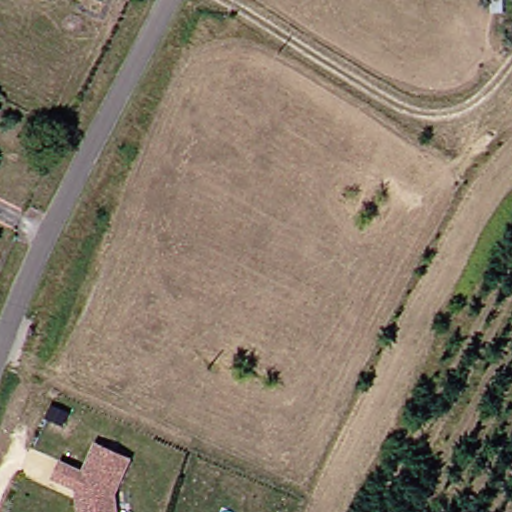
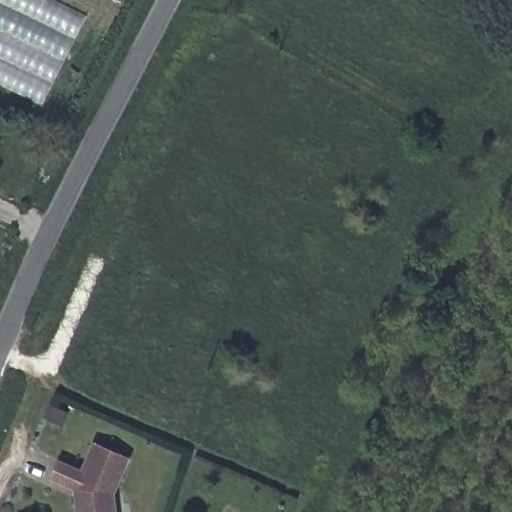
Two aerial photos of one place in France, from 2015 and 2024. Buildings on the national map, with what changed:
new [(43,105),(0,85),(0,0),(54,0),(86,15),(43,105)]
unchanged [(53,479),(59,462),(83,472),(94,444),(128,458),(113,493),(115,512),(78,512),(76,499),(75,488),(53,479)]

